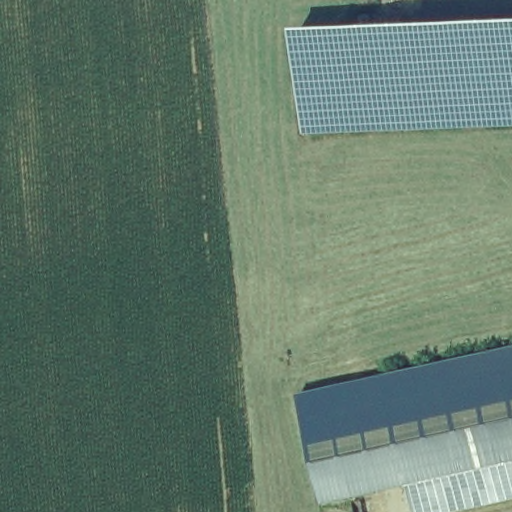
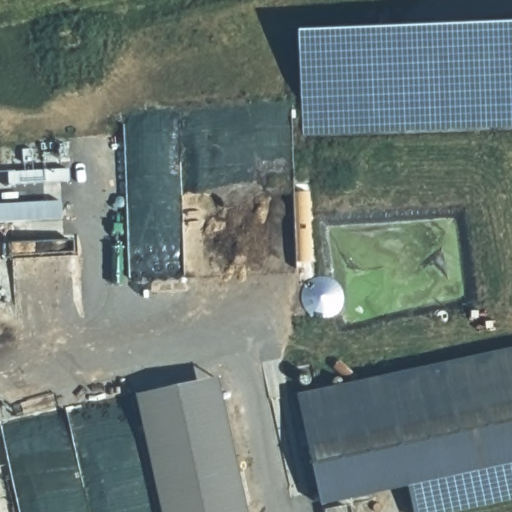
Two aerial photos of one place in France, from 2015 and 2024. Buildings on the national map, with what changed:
unchanged [(512,124),(307,133),(302,33),(512,26),(512,124)]
new [(2,285),(0,292),(0,258),(2,266),(3,275),(2,285)]
unchanged [(512,351),(512,502),(466,512),(414,512),(407,488),(323,507),(298,397),(512,351)]
new [(220,375),(249,512),(162,512),(137,394),(220,375)]

